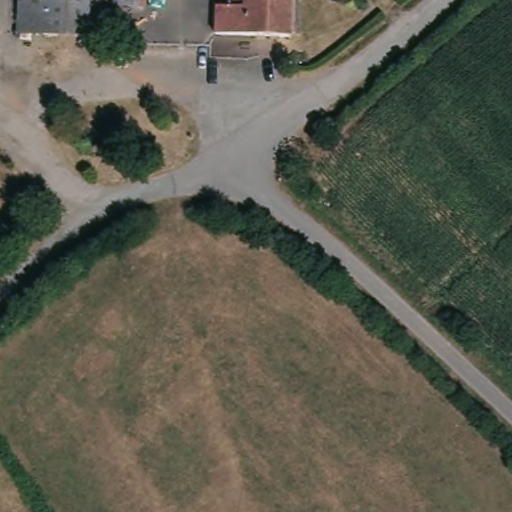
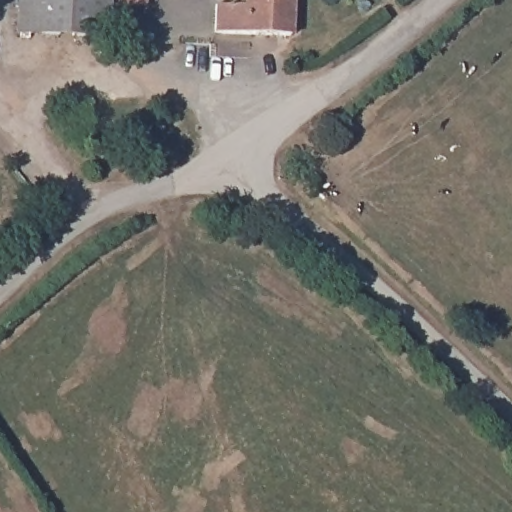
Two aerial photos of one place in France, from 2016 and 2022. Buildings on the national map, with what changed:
unchanged [(110,9),(110,34),(14,33),(15,0),(111,0),(110,9)]
unchanged [(146,7),(116,3),(116,0),(147,0),(146,7)]
unchanged [(293,35),(214,31),(214,5),(231,5),(231,0),(294,0),(293,35)]

